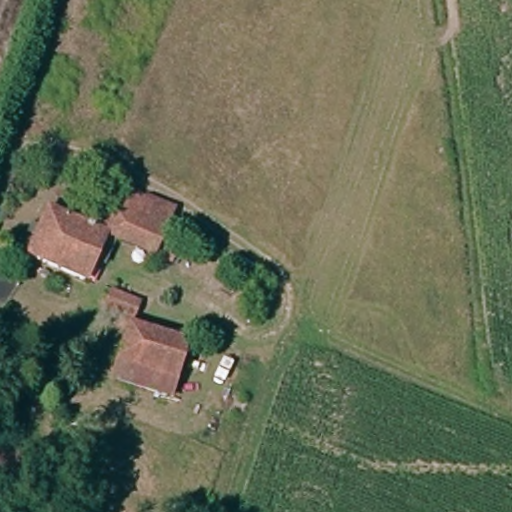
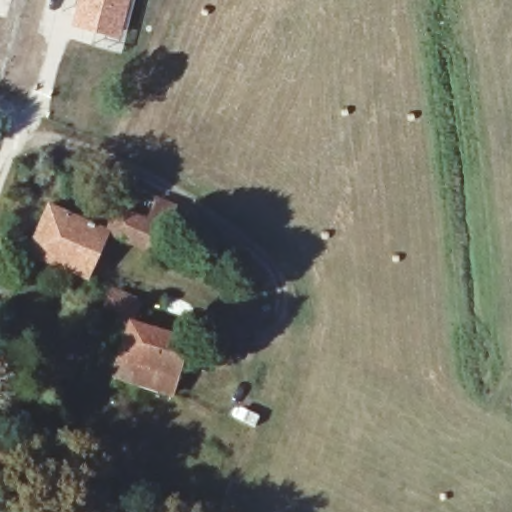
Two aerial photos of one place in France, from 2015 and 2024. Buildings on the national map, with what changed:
new [(121,35),(71,24),(77,0),(130,0),(121,35)]
unchanged [(112,209),(121,186),(172,208),(163,229),(112,209)]
unchanged [(24,253),(43,205),(74,217),(81,197),(112,209),(163,229),(155,250),(103,230),(85,277),(24,253)]
unchanged [(97,310),(104,292),(135,305),(130,320),(97,310)]
unchanged [(112,382),(128,327),(184,343),(169,397),(112,382)]
unchanged [(8,445),(0,464),(0,442),(8,445)]

